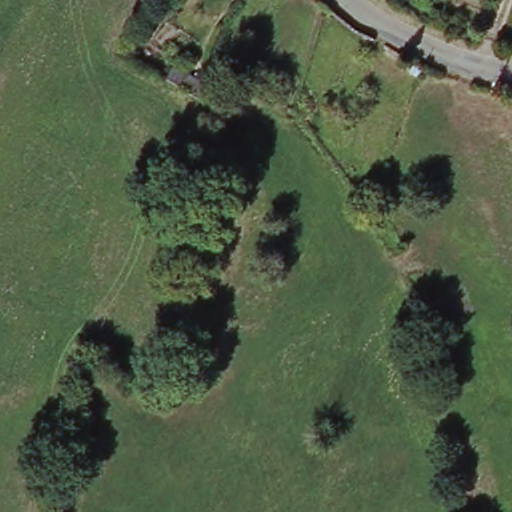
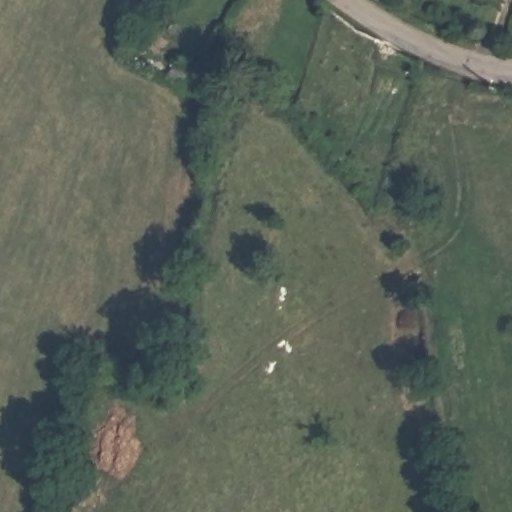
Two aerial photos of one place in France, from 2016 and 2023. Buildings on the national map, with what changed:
unchanged [(192,78),(182,93),(159,77),(170,63),(192,78)]

